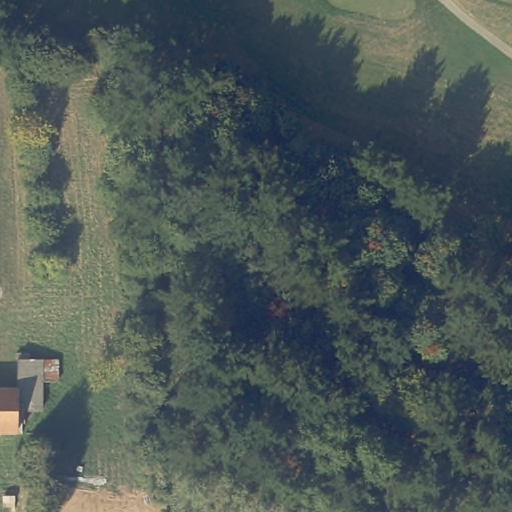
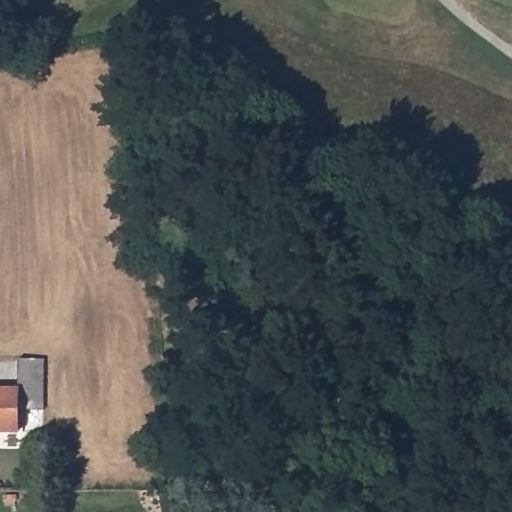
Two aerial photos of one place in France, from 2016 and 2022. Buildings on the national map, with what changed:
unchanged [(8,361),(7,361),(7,353),(21,354),(20,361),(32,362),(30,411),(14,411),(13,433),(0,433),(0,390),(6,390),(8,361)]

